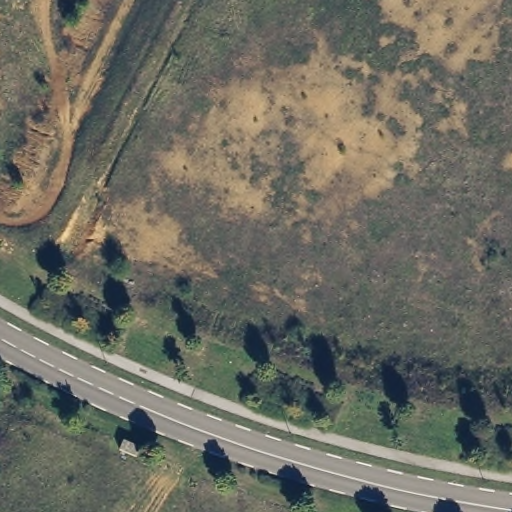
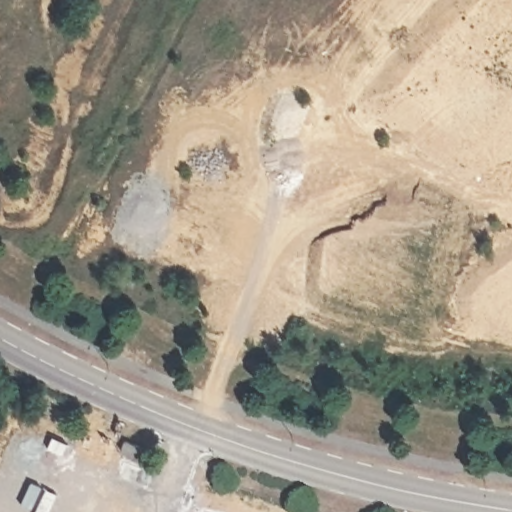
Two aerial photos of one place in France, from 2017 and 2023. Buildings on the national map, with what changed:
unchanged [(115,450),(121,437),(139,445),(135,457),(115,450)]

